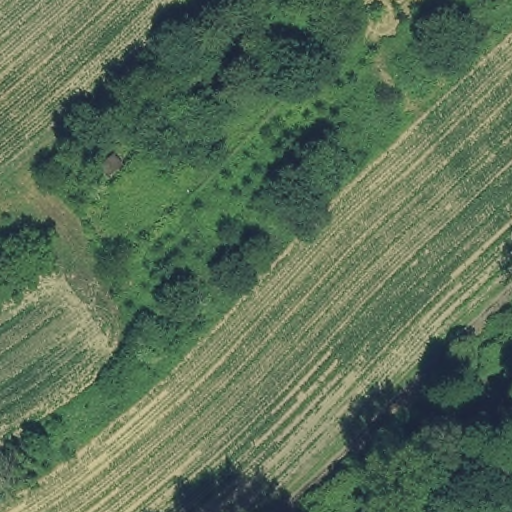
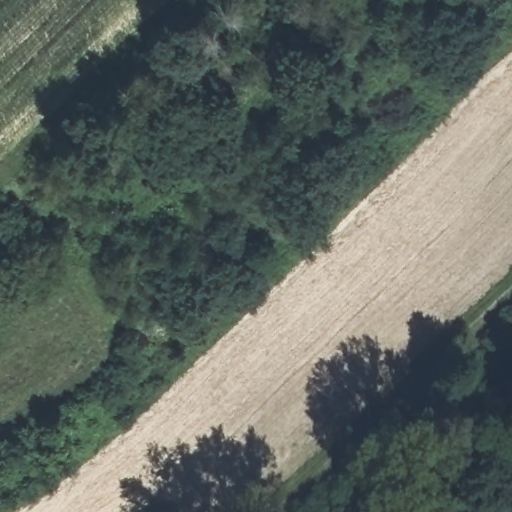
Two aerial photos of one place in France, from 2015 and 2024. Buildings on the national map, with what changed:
unchanged [(251,65),(224,86),(205,67),(232,43),(251,65)]
unchanged [(114,117),(129,143),(109,154),(98,133),(114,117)]

